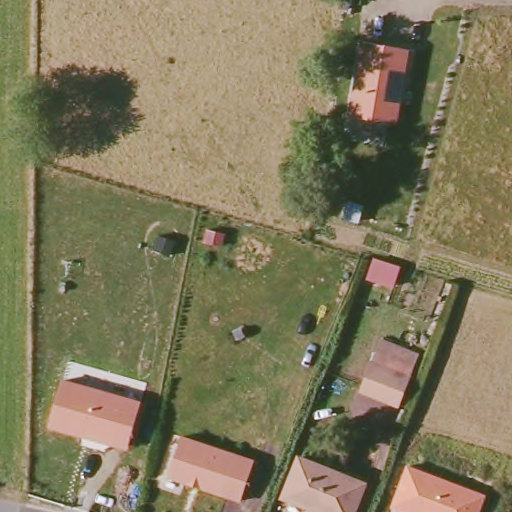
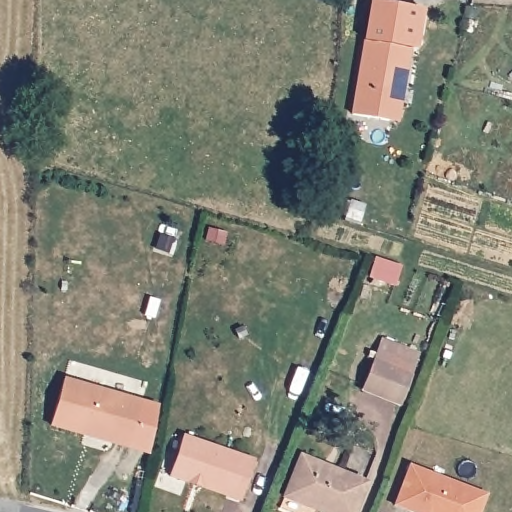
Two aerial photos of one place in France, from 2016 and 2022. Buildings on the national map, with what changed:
new [(363,41),(370,1),(423,10),(413,50),(363,41)]
unchanged [(413,50),(400,126),(350,116),(363,41),(413,50)]
unchanged [(225,232),(222,244),(207,241),(209,229),(225,232)]
unchanged [(354,272),(359,259),(372,263),(369,275),(354,272)]
unchanged [(392,285),(369,279),(375,259),(399,267),(392,285)]
unchanged [(358,391),(369,364),(380,337),(417,353),(410,369),(406,378),(395,406),(358,391)]
unchanged [(143,401),(130,450),(51,428),(64,378),(143,401)]
unchanged [(182,438),(254,462),(240,502),(200,489),(198,485),(190,482),(187,484),(169,478),(182,438)]
unchanged [(279,497),(295,457),(354,481),(365,452),(372,455),(360,484),(349,512),(316,512),(279,497)]
unchanged [(407,464),(487,494),(480,512),(409,512),(393,506),(407,464)]

